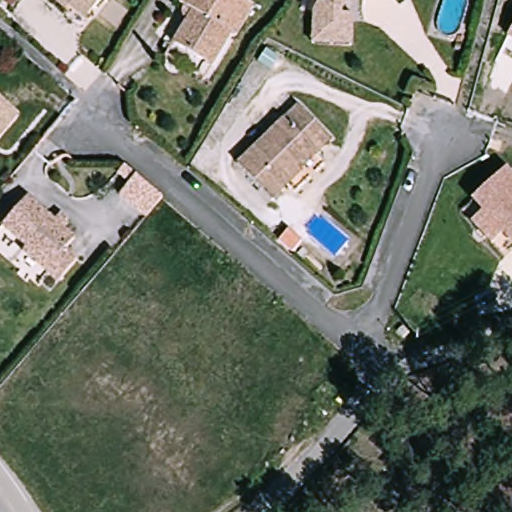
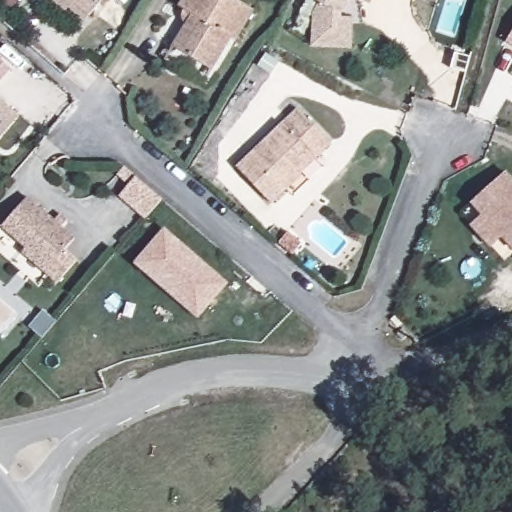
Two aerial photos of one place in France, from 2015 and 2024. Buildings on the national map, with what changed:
unchanged [(82,23),(63,0),(109,0),(82,23)]
unchanged [(181,51),(201,20),(189,13),(196,0),(235,0),(244,5),(259,14),(241,45),(235,42),(214,74),(181,51)]
unchanged [(321,9),(325,0),(347,0),(346,9),(359,10),(355,45),(319,41),(318,32),(321,9)]
unchanged [(512,33),(512,42),(508,39),(512,33)]
new [(11,70),(0,83),(0,60),(11,70)]
unchanged [(20,114),(0,136),(0,96),(20,114)]
unchanged [(318,150),(302,166),(307,170),(276,199),(244,162),(305,106),(336,140),(323,154),(318,150)]
unchanged [(128,169),(166,203),(150,221),(123,197),(133,185),(122,175),(128,169)]
unchanged [(505,173),(512,181),(512,251),(504,240),(492,250),(473,227),(484,217),(471,203),(505,173)]
unchanged [(79,239),(69,250),(81,260),(63,281),(54,273),(54,263),(9,224),(31,197),(79,239)]
new [(165,227),(229,283),(199,320),(134,263),(165,227)]

